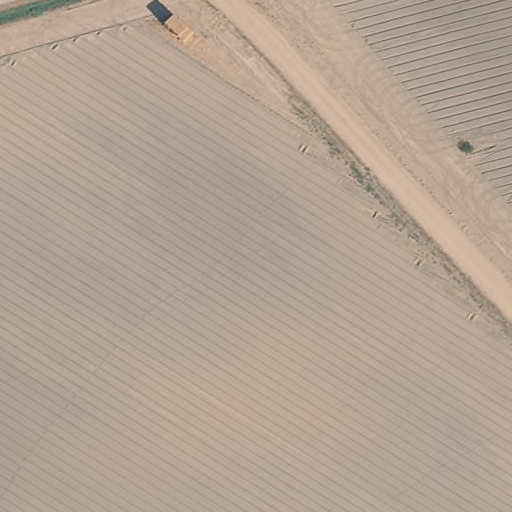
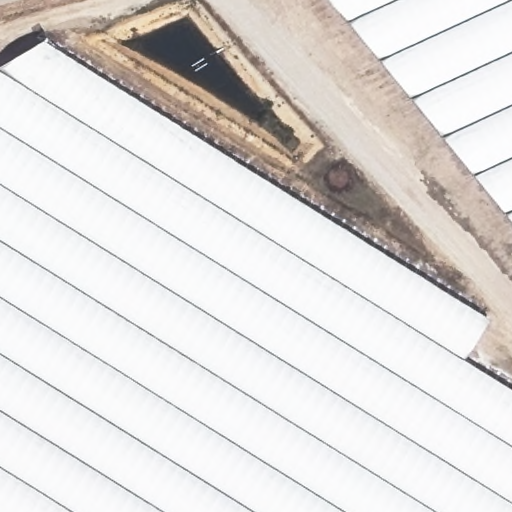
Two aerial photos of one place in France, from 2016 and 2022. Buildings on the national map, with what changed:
new [(512,0),(512,227),(327,0),(512,0)]
new [(44,41),(490,321),(464,362),(512,391),(512,512),(0,512),(0,67),(44,41)]

